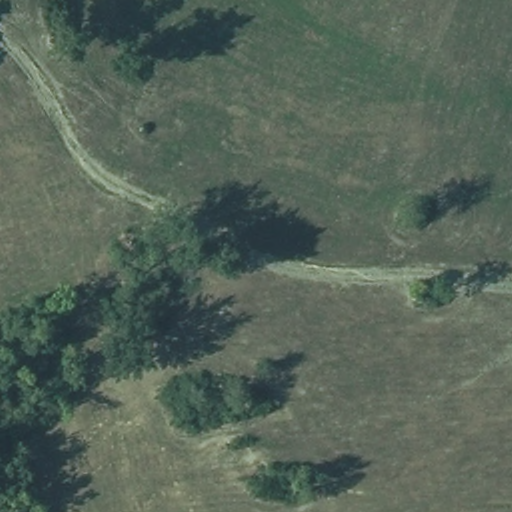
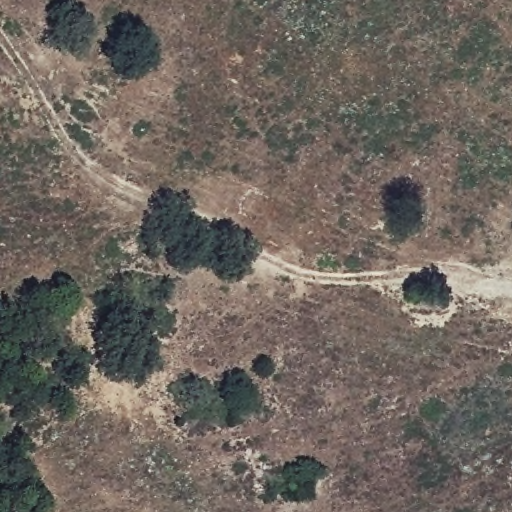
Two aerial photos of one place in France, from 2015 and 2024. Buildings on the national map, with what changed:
[]

